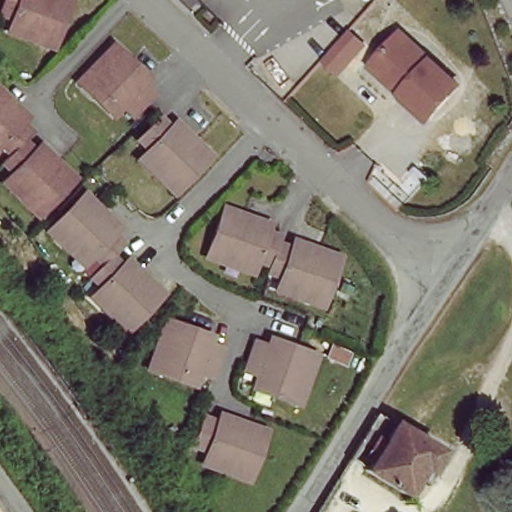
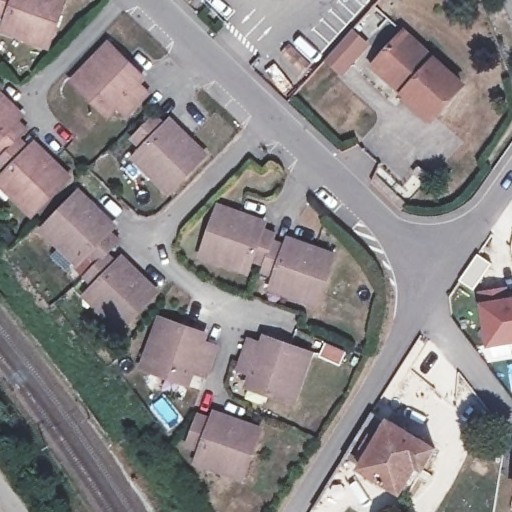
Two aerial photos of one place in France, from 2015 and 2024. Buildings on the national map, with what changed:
unchanged [(25,33),(28,26),(5,18),(7,13),(0,11),(0,0),(62,0),(46,41),(25,33)]
unchanged [(375,59),(402,31),(460,84),(429,117),(401,91),(371,64),(375,59)]
unchanged [(148,81),(146,86),(148,92),(152,96),(153,97),(131,120),(120,109),(116,112),(101,97),(95,103),(76,86),(114,47),(133,65),(148,81)]
unchanged [(29,135),(23,142),(32,151),(35,147),(53,165),(71,183),(34,221),(18,201),(23,196),(5,178),(8,175),(0,168),(0,167),(5,158),(0,153),(0,96),(23,120),(18,125),(29,135)]
unchanged [(156,124),(168,135),(171,131),(188,147),(206,164),(171,199),(155,183),(160,178),(141,160),(145,157),(135,147),(156,124)]
unchanged [(81,194),(116,227),(110,233),(121,244),(109,257),(118,266),(123,262),(158,295),(122,332),(106,318),(111,313),(91,294),(95,290),(88,280),(99,267),(86,257),(83,260),(66,242),(61,247),(45,232),(81,194)]
unchanged [(219,214),(265,231),(263,236),(277,241),(275,248),(286,253),(288,247),(333,264),(316,312),(294,304),(297,295),(273,286),(275,283),(263,278),(266,271),(253,266),(250,269),(246,270),(243,268),(226,263),(223,270),(201,261),(219,214)]
new [(488,344),(480,294),(498,291),(500,302),(506,301),(512,300),(512,340),(488,344)]
unchanged [(161,326),(206,345),(204,351),(219,357),(206,388),(191,382),(189,388),(168,379),(165,387),(143,378),(161,326)]
unchanged [(249,347),(264,352),(266,344),(288,353),(308,362),(291,410),(270,402),(273,393),(250,385),(251,381),(240,375),(249,347)]
unchanged [(198,422),(213,426),(214,420),(259,436),(241,484),(221,476),(223,469),(198,460),(200,455),(188,451),(198,422)]
unchanged [(444,459),(415,506),(370,477),(375,469),(366,464),(373,454),(364,449),(383,420),(444,459)]

